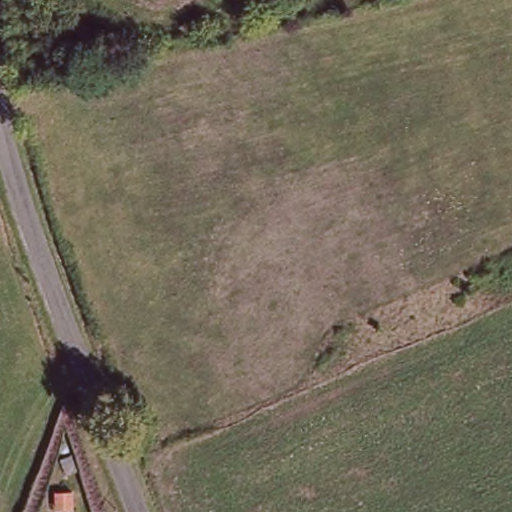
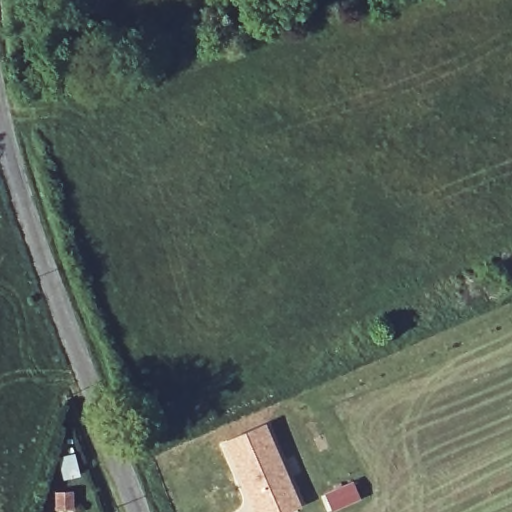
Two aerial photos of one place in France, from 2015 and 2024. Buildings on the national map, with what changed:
new [(265,424),(301,506),(286,512),(257,512),(225,441),(265,424)]

